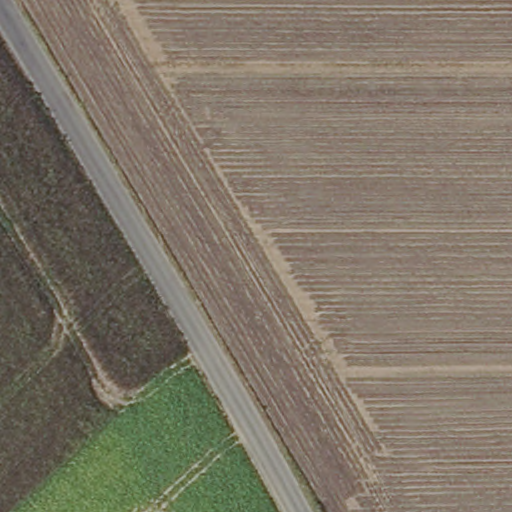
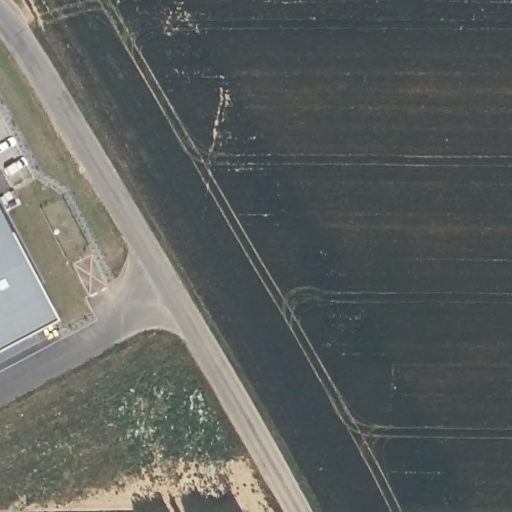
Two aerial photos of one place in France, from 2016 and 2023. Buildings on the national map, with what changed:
new [(0,352),(0,201),(63,320),(0,352)]

